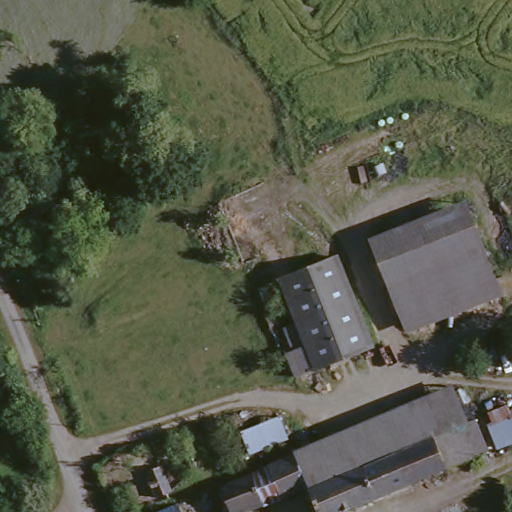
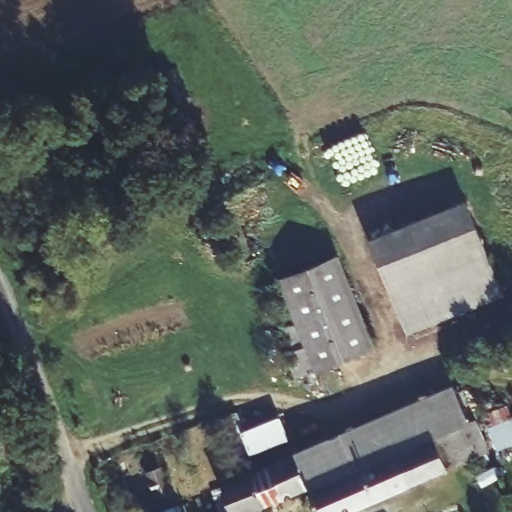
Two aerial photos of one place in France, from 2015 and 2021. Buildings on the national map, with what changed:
unchanged [(470,197),(490,244),(506,281),(414,322),(398,286),(378,239),(470,197)]
unchanged [(298,272),(346,252),(384,340),(372,346),(307,373),(297,351),(299,350),(290,330),(306,322),(286,278),(298,272)]
unchanged [(310,490),(295,456),(455,385),(470,420),(438,436),(405,451),(317,490),(311,492),(310,490)]
unchanged [(508,444),(490,410),(491,409),(512,398),(512,442),(508,444)]
unchanged [(478,416),(492,446),(452,465),(438,436),(470,420),(478,416)]
unchanged [(289,435),(252,452),(248,447),(242,433),(279,417),(284,425),(289,435)]
unchanged [(405,451),(438,436),(452,465),(346,512),(327,512),(317,490),(405,451)]
unchanged [(273,465),(295,456),(310,490),(269,507),(254,472),(273,465)]
unchanged [(159,461),(172,486),(156,494),(143,469),(159,461)]
unchanged [(269,507),(256,512),(230,512),(219,487),(254,472),(269,507)]
unchanged [(219,487),(230,512),(163,512),(170,509),(219,487)]

